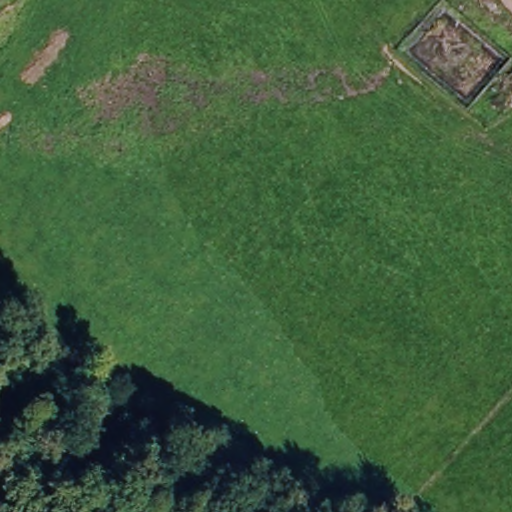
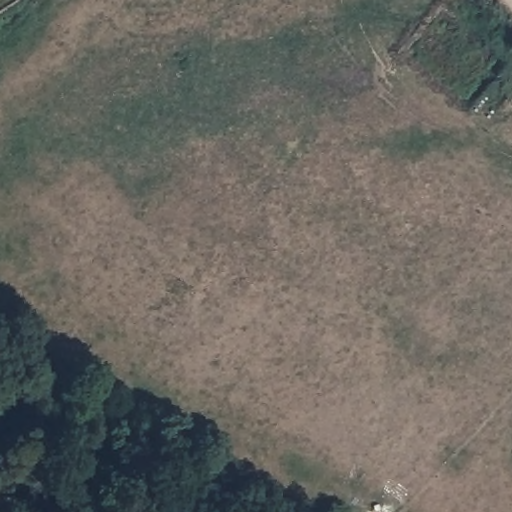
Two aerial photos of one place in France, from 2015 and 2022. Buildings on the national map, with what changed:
[]

